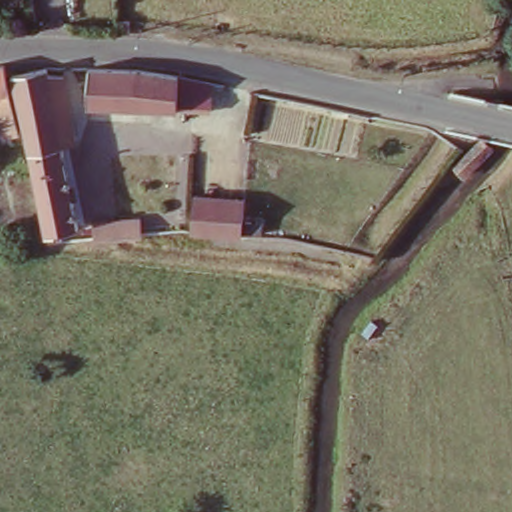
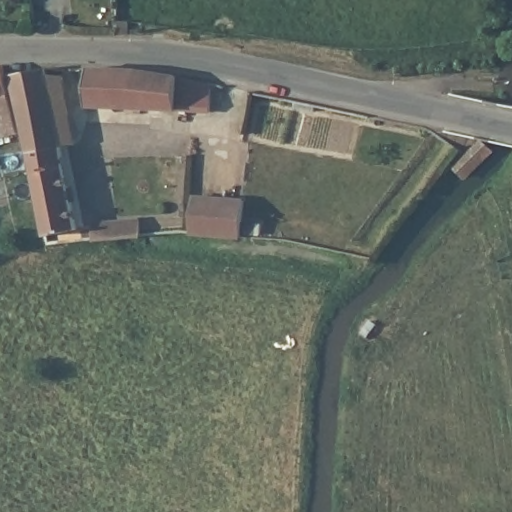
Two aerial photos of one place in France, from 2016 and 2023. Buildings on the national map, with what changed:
unchanged [(117,10),(130,11),(130,22),(130,25),(117,25),(117,21),(117,10)]
unchanged [(15,134),(0,138),(0,73),(1,77),(15,134)]
unchanged [(172,115),(87,111),(90,73),(140,75),(176,81),(172,115)]
unchanged [(42,239),(25,163),(7,76),(42,74),(44,80),(60,80),(62,79),(75,149),(57,152),(72,234),(42,239)]
unchanged [(211,86),(205,119),(194,117),(172,115),(176,81),(197,84),(211,86)]
unchanged [(480,144),(488,153),(473,168),(463,159),(480,144)]
unchanged [(199,197),(246,205),(240,241),(192,233),(199,197)]
unchanged [(94,230),(140,226),(141,241),(95,245),(94,230)]

